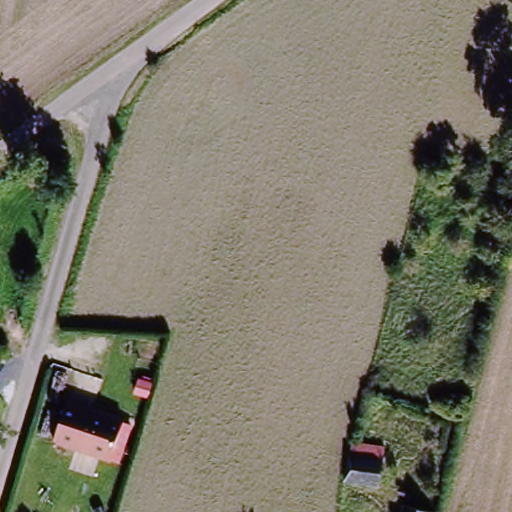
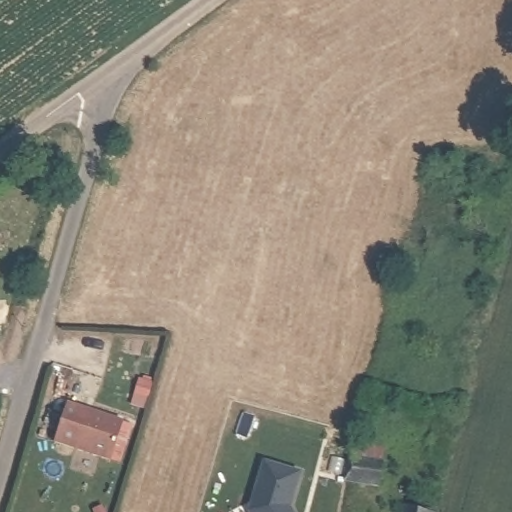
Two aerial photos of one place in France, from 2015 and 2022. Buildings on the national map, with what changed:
unchanged [(51,448),(67,406),(120,426),(107,467),(51,448)]
unchanged [(354,458),(380,462),(376,486),(349,481),(354,458)]
new [(258,503),(254,502),(265,465),(299,475),(289,510),(290,512),(254,512),(256,511),(258,503)]
unchanged [(414,512),(406,512),(407,510),(414,512)]

